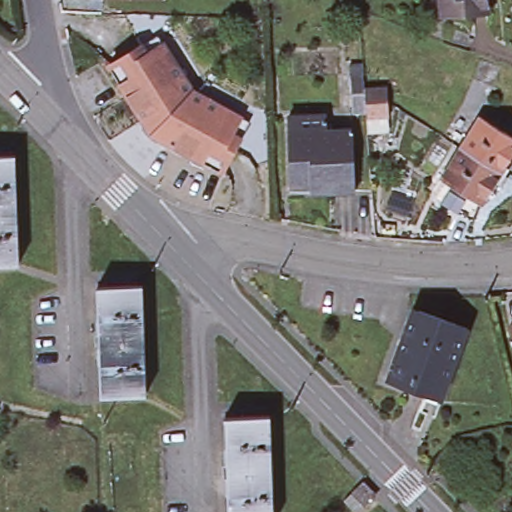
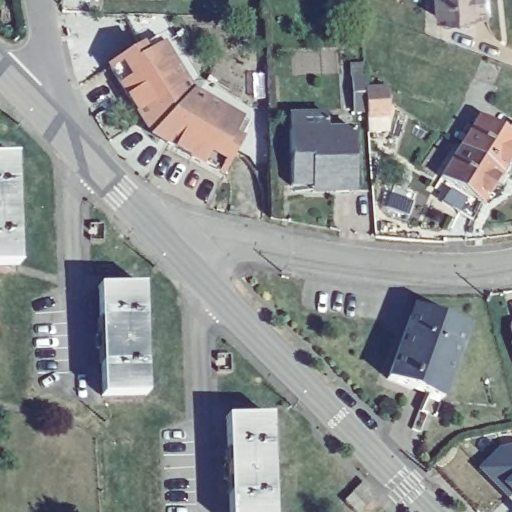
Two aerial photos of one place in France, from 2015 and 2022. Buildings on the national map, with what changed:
unchanged [(439,17),(438,0),(486,0),(488,13),(439,17)]
unchanged [(155,151),(156,149),(148,140),(141,125),(131,103),(114,67),(120,63),(134,55),(150,45),(155,54),(182,98),(188,103),(232,127),(241,132),(231,148),(211,182),(179,164),(163,156),(155,151)]
unchanged [(365,129),(364,111),(363,97),(361,83),(386,82),(386,96),(386,110),(377,111),(378,128),(365,129)]
unchanged [(309,180),(287,181),(285,127),(284,111),(324,110),(324,126),(350,125),(353,186),(333,187),(309,188),(309,180)]
unchanged [(512,137),(512,153),(501,171),(459,146),(479,115),(512,137)]
unchanged [(454,212),(465,194),(438,177),(459,146),(501,171),(480,204),(479,203),(467,220),(454,212)]
unchanged [(13,157),(16,265),(0,265),(0,158),(13,157)]
unchanged [(94,282),(139,282),(141,392),(97,393),(94,282)]
unchanged [(418,310),(466,328),(440,398),(385,378),(408,314),(418,310)]
unchanged [(512,319),(512,333),(509,320),(512,319)]
unchanged [(224,416),(267,415),(270,512),(226,512),(224,416)]
new [(512,454),(512,504),(477,469),(498,448),(512,446),(512,448),(509,450),(512,454)]
unchanged [(512,448),(512,454),(509,450),(512,448)]
unchanged [(372,496),(363,505),(351,491),(358,483),(372,496)]

